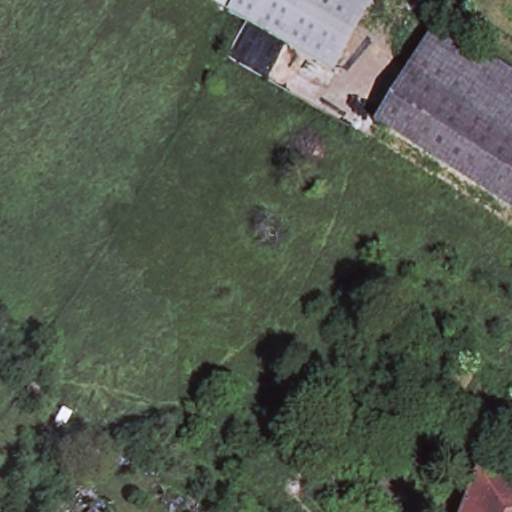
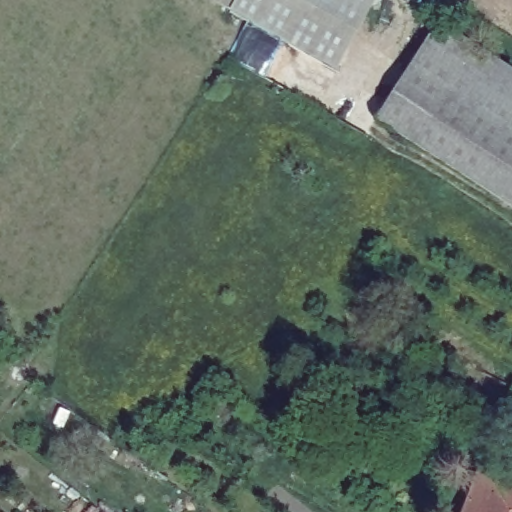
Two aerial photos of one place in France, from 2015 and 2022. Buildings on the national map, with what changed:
unchanged [(230,11),(211,0),(377,0),(337,72),(230,11)]
unchanged [(437,21),(512,68),(512,208),(374,121),(437,21)]
unchanged [(512,478),(512,512),(465,512),(480,475),(476,473),(478,467),(482,468),(512,478)]

